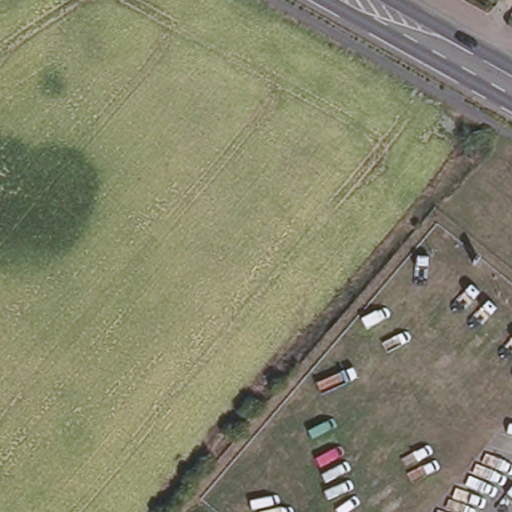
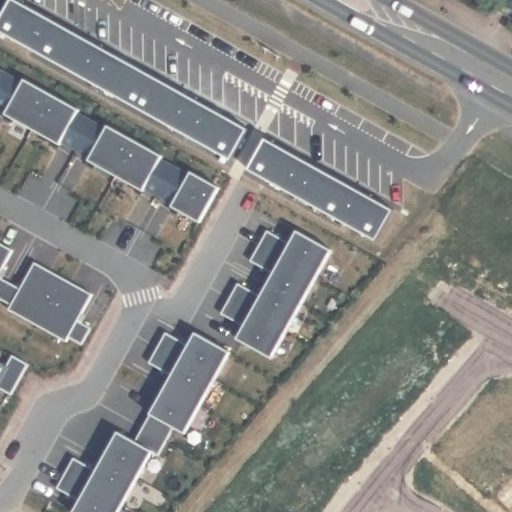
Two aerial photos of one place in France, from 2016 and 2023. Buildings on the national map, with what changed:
new [(223,156),(0,35),(0,9),(5,0),(13,0),(241,123),(223,156)]
new [(27,70),(82,100),(80,108),(106,122),(110,116),(164,147),(161,151),(190,169),(192,164),(219,178),(201,213),(175,198),(179,193),(149,178),(145,183),(90,152),(94,146),(64,130),(61,135),(9,108),(12,101),(0,94),(0,63),(25,76),(27,70)]
new [(384,203),(367,234),(241,164),(257,133),(384,203)]
new [(270,351),(235,334),(242,320),(220,309),(236,280),(260,292),(272,269),(247,257),(263,229),(286,241),(294,227),(326,246),(270,351)]
new [(0,260),(0,238),(9,242),(0,260)]
new [(32,256),(89,288),(74,314),(86,322),(79,337),(65,327),(62,333),(9,304),(11,299),(0,293),(0,270),(18,281),(32,256)]
new [(172,418),(158,448),(150,444),(115,512),(85,512),(75,507),(84,495),(61,482),(75,453),(101,466),(121,426),(139,436),(172,368),(151,357),(168,328),(189,340),(197,326),(229,346),(185,427),(172,418)]
new [(10,350),(25,358),(10,386),(0,380),(0,357),(5,360),(10,350)]

